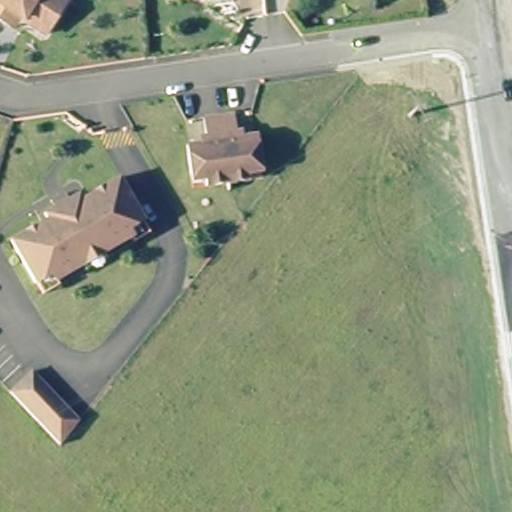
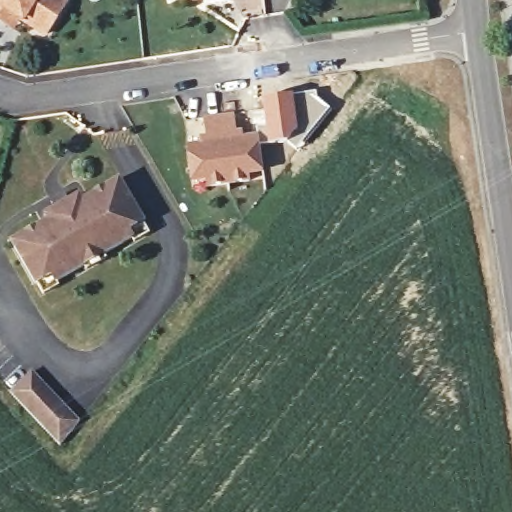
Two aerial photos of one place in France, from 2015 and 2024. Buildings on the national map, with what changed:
unchanged [(0,23),(0,0),(62,0),(63,0),(41,34),(16,18),(9,28),(0,23)]
unchanged [(171,2),(171,0),(186,0),(171,2)]
unchanged [(194,7),(193,0),(205,0),(205,5),(194,7)]
new [(257,135),(256,125),(265,125),(261,98),(293,94),(316,91),(316,97),(330,108),(295,150),(286,142),(268,144),(258,144),(257,135)]
unchanged [(207,141),(204,116),(234,113),(237,137),(257,135),(261,164),(247,165),(248,179),(205,184),(203,170),(189,172),(186,143),(207,141)]
unchanged [(79,205),(116,184),(140,228),(125,236),(129,243),(99,260),(95,253),(77,263),(81,270),(51,287),(47,280),(32,288),(7,245),(45,224),(42,219),(52,213),(49,206),(62,199),(66,205),(76,200),(79,205)]
unchanged [(9,392),(31,372),(63,407),(76,422),(58,446),(35,421),(9,392)]

